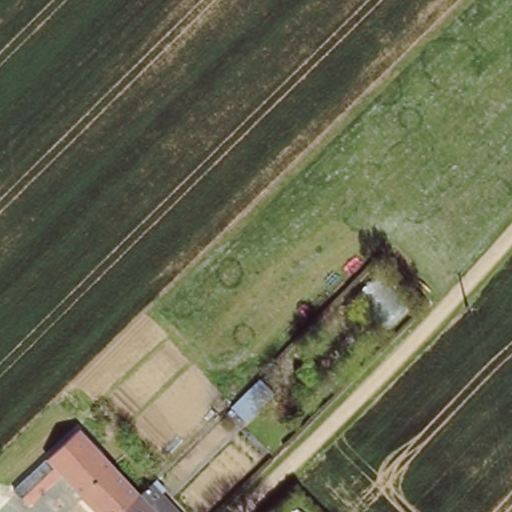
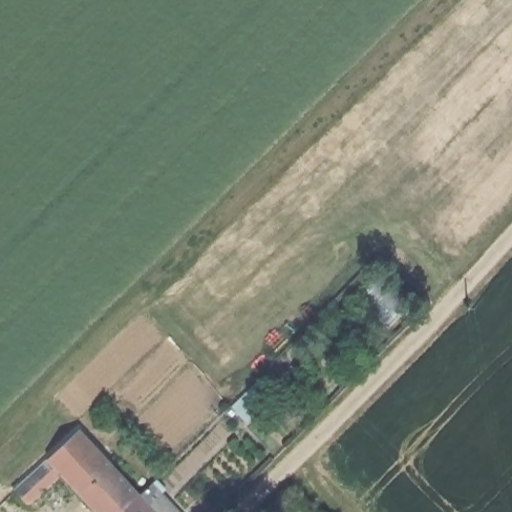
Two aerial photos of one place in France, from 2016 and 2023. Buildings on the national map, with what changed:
unchanged [(58,477),(25,507),(9,489),(72,430),(103,460),(138,495),(150,484),(162,497),(172,508),(175,512),(90,512),(58,477)]

